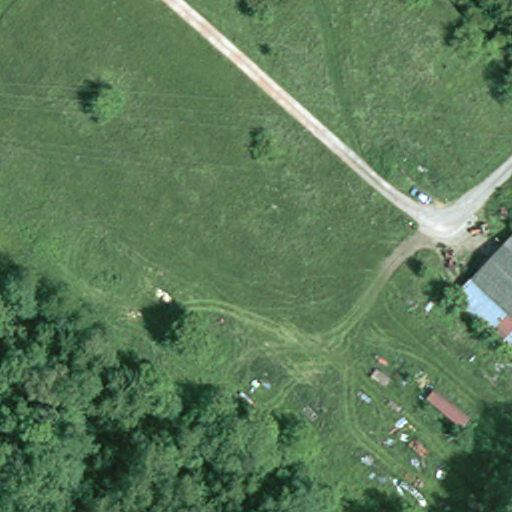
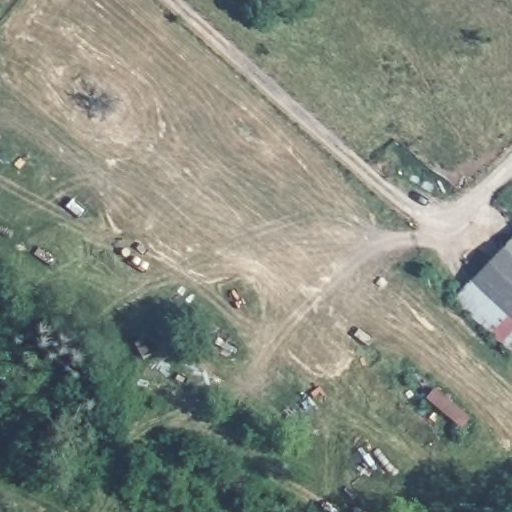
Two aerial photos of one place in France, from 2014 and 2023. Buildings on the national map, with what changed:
unchanged [(466,294),(512,244),(512,336),(466,294)]

